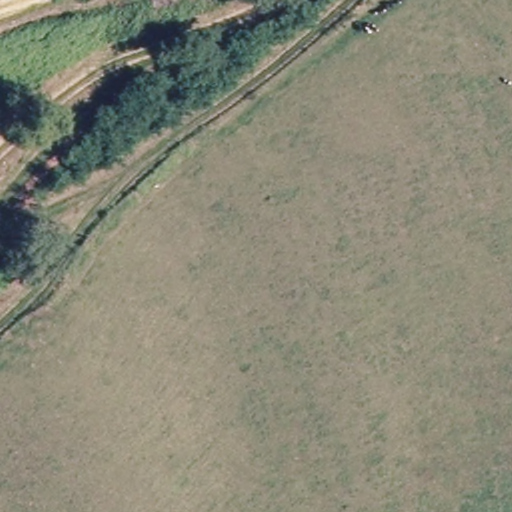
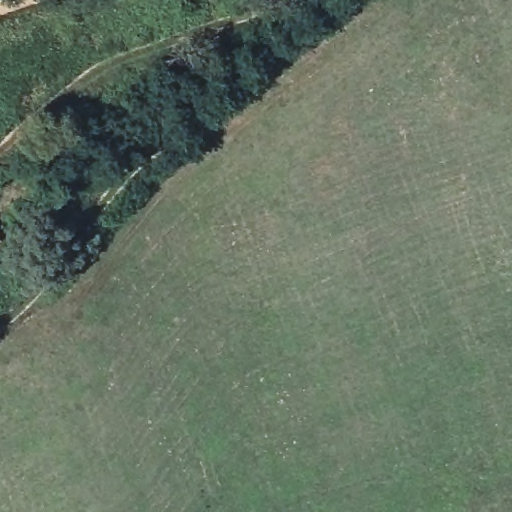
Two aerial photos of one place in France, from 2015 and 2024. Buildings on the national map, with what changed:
unchanged [(2,241),(0,242),(0,238),(2,241)]

